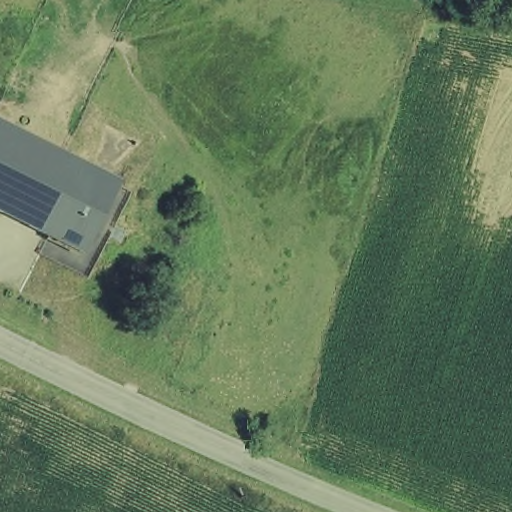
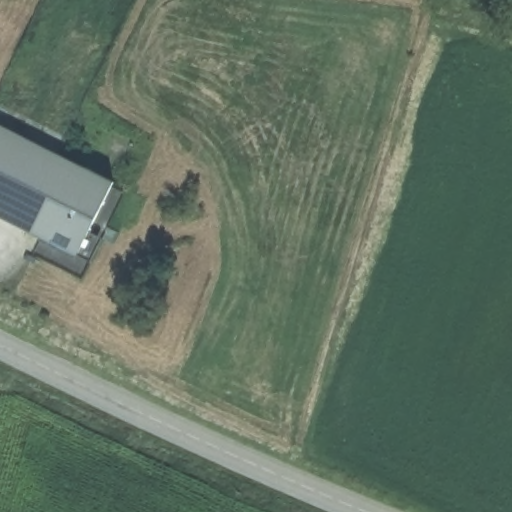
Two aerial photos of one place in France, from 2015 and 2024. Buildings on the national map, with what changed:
unchanged [(73,249),(0,215),(0,128),(108,179),(73,249)]

